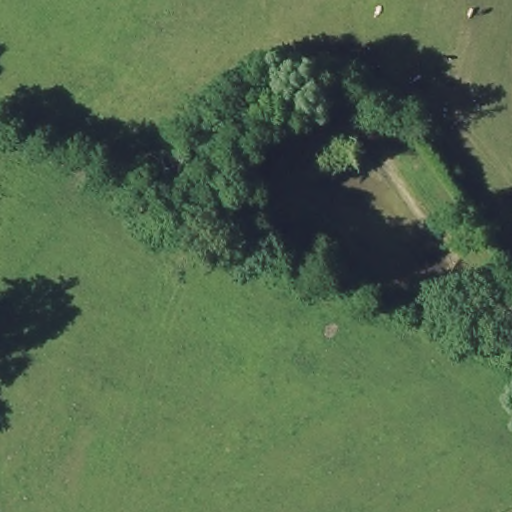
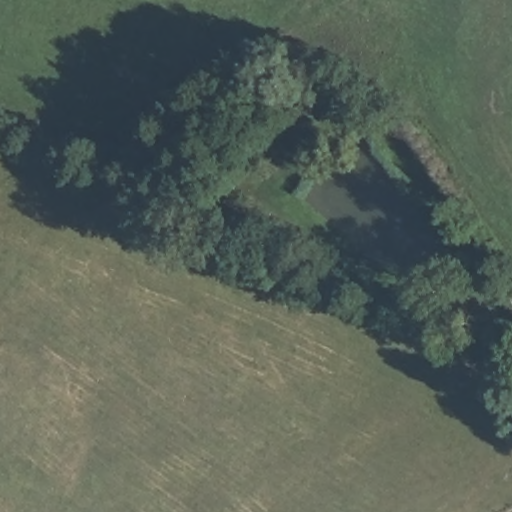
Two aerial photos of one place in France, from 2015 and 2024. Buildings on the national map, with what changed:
unchanged [(509,303),(512,300),(512,306),(509,303)]

